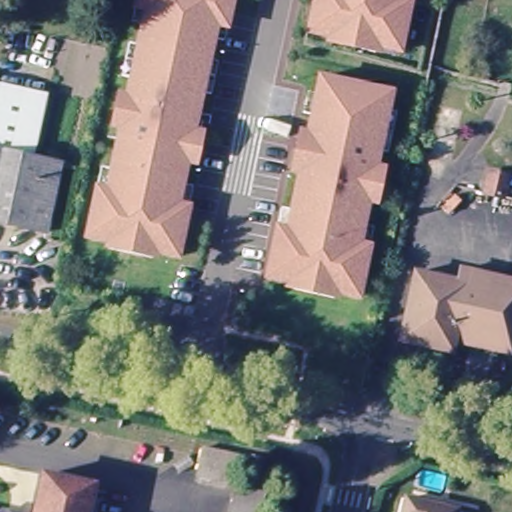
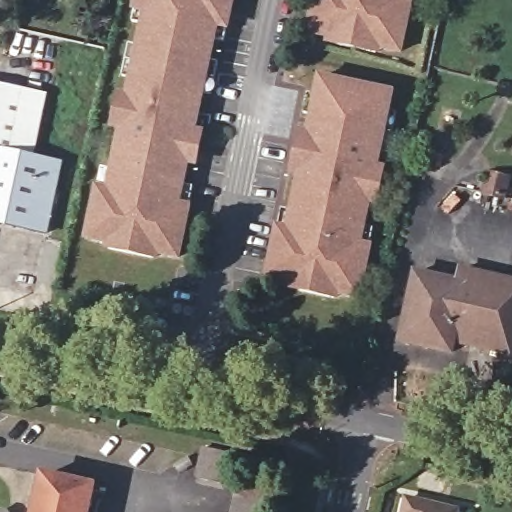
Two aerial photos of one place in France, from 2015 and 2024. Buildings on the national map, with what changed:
unchanged [(178,258),(87,238),(98,187),(100,177),(111,179),(116,154),(107,153),(112,131),(121,133),(130,93),(121,91),(128,58),(137,60),(146,20),(135,18),(137,8),(139,0),(235,0),(229,28),(227,38),(217,35),(207,76),(217,78),(209,110),(201,109),(192,149),(200,151),(196,172),(187,170),(182,194),(192,197),(190,208),(178,258)]
unchanged [(372,44),(332,35),(332,38),(307,33),(315,0),(410,0),(410,1),(398,52),(372,46),(372,44)]
unchanged [(294,283),(270,278),(280,227),(280,228),(284,208),(294,210),(300,186),(292,184),(300,149),(307,150),(315,115),(307,114),(312,93),(319,95),(323,78),(392,93),(388,110),(396,112),(387,153),(380,151),(376,170),(383,172),(377,200),(370,198),(363,225),(374,228),(370,247),(359,297),(335,292),(333,299),(292,290),(294,283)]
unchanged [(48,93),(35,156),(2,149),(0,148),(0,83),(6,84),(48,93)]
unchanged [(0,163),(0,148),(2,149),(0,163)]
unchanged [(62,161),(48,230),(0,221),(0,163),(2,149),(35,156),(62,161)]
unchanged [(508,175),(504,200),(480,194),(485,170),(508,175)]
unchanged [(440,353),(390,340),(403,279),(452,290),(456,279),(512,291),(512,340),(507,363),(441,347),(440,353)]
unchanged [(209,479),(214,454),(248,462),(244,488),(209,479)]
unchanged [(50,478),(101,488),(96,512),(43,512),(50,478)]
unchanged [(262,494),(259,512),(228,512),(234,488),(262,494)]
unchanged [(410,504),(445,512),(409,512),(410,504)]

